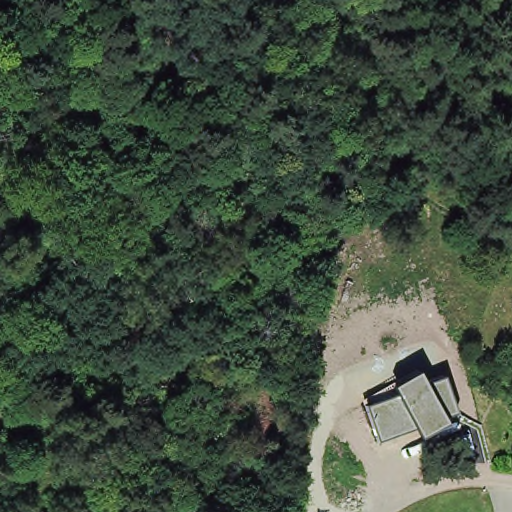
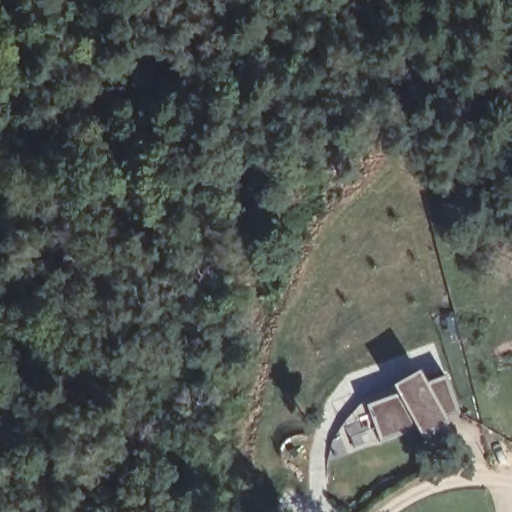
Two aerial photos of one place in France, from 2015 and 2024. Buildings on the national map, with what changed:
unchanged [(457,414),(443,419),(445,423),(420,437),(415,429),(377,442),(363,405),(395,393),(390,386),(415,371),(423,384),(445,377),(457,414)]

